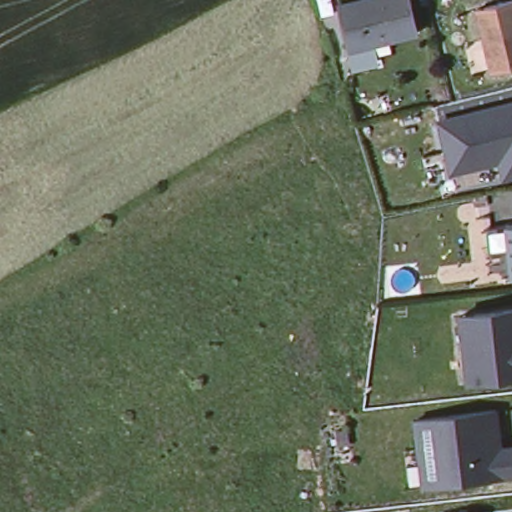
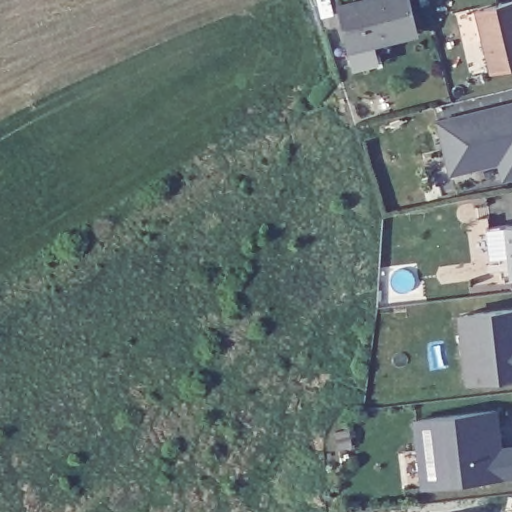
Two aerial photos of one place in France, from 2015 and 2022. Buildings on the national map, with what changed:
unchanged [(350,49),(341,11),(339,5),(360,0),(411,0),(419,32),(350,49)]
unchanged [(492,66),(477,6),(500,0),(512,0),(512,61),(492,66)]
unchanged [(430,105),(428,95),(441,91),(444,101),(430,105)]
unchanged [(512,104),(512,176),(504,177),(500,160),(493,157),(473,162),(474,167),(452,173),(439,122),(512,104)]
unchanged [(512,225),(512,276),(512,277),(506,226),(512,225)]
unchanged [(468,382),(463,340),(460,317),(474,315),(512,310),(512,377),(468,382)]
unchanged [(421,462),(415,416),(495,407),(499,445),(512,443),(512,472),(439,481),(423,482),(421,462)]

